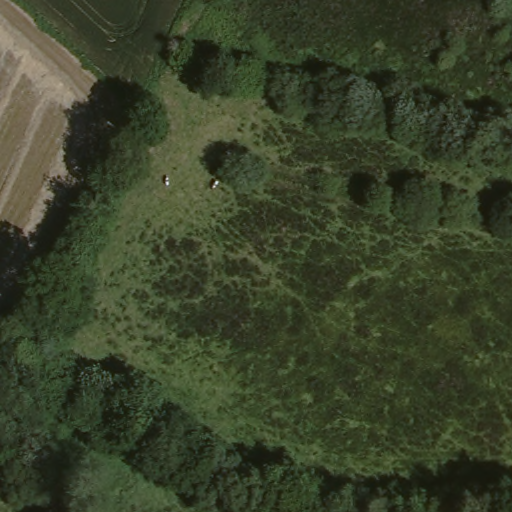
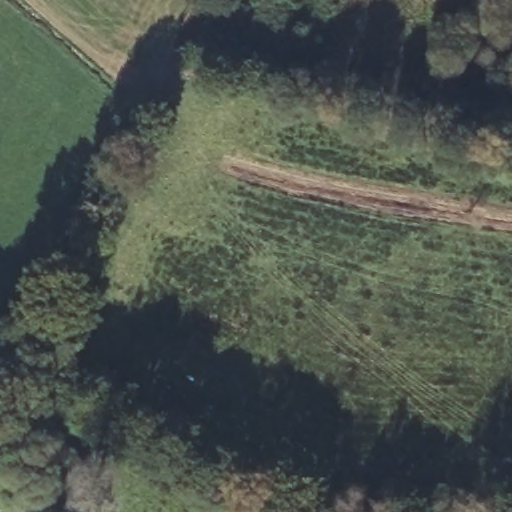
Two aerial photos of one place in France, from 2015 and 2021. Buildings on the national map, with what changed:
[]

